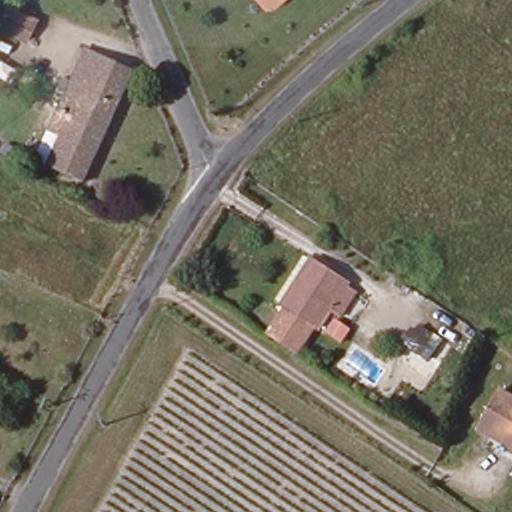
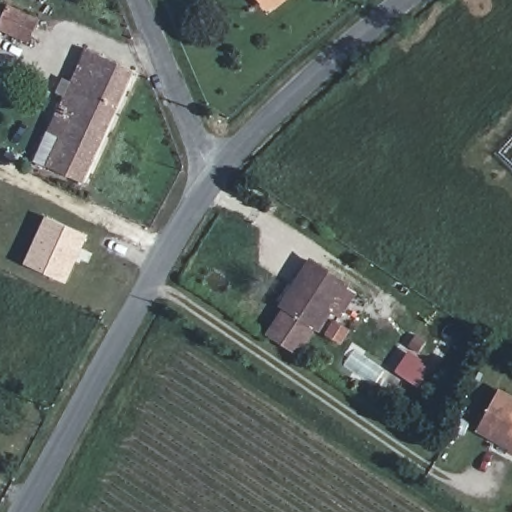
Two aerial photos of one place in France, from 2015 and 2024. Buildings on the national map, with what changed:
unchanged [(266,11),(257,0),(280,0),(266,11)]
unchanged [(26,43),(0,31),(0,22),(6,10),(33,26),(26,43)]
unchanged [(84,52),(128,75),(106,130),(60,110),(84,52)]
unchanged [(106,130),(84,186),(49,171),(60,142),(48,136),(60,110),(106,130)]
new [(88,236),(66,283),(23,263),(45,216),(88,236)]
unchanged [(283,308),(275,301),(307,260),(352,290),(347,298),(353,303),(344,321),(332,315),(297,356),(264,336),(283,308)]
unchanged [(427,344),(444,354),(436,369),(418,357),(427,344)]
unchanged [(512,407),(512,449),(475,434),(492,399),(512,407)]

